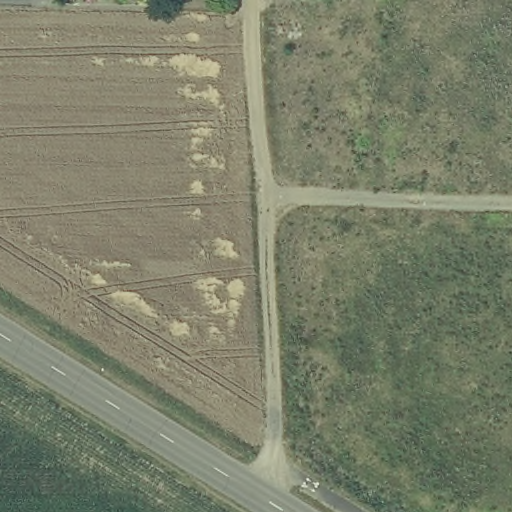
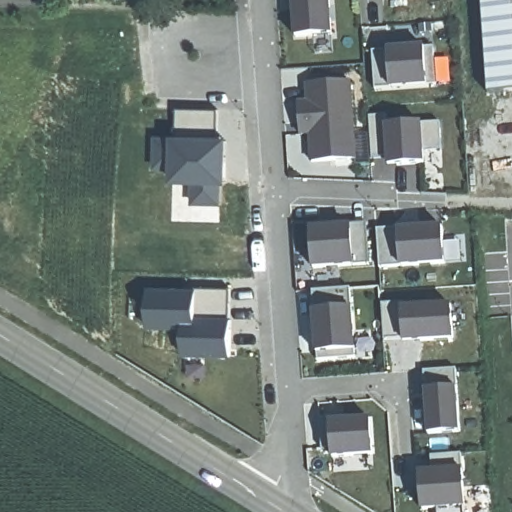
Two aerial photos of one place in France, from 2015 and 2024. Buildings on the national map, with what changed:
new [(295,37),(293,0),(330,0),(331,35),(295,37)]
new [(482,0),(512,0),(512,92),(488,93),(482,0)]
new [(427,85),(390,89),(390,87),(376,87),(373,51),(388,50),(426,47),(435,47),(437,84),(427,85)]
new [(311,162),(310,136),(301,136),(298,101),(307,101),(305,84),(352,82),(357,159),(311,162)]
new [(219,109),(221,142),(229,142),(228,179),(179,182),(178,109),(219,109)]
new [(423,150),(425,163),(387,166),(387,156),(372,157),(370,116),(386,115),(385,125),(422,123),(440,122),(442,149),(423,150)]
new [(354,265),(313,268),(310,228),(352,223),(367,223),(370,263),(354,265)]
new [(401,265),(380,266),(377,230),(398,229),(442,226),(445,263),(401,265)]
new [(230,287),(234,356),(185,356),(183,330),(148,329),(146,281),(230,287)]
new [(318,360),(316,353),(313,311),(313,290),(350,288),(353,309),(355,350),(355,357),(318,360)]
new [(420,341),(420,338),(385,339),(384,302),(405,301),(405,308),(451,306),(453,339),(420,341)]
new [(428,434),(426,389),(425,370),(455,369),(457,389),(460,432),(428,434)]
new [(332,458),(331,448),(322,449),(320,418),(330,417),(329,421),(372,419),(375,455),(332,458)]
new [(431,471),(430,457),(461,455),(462,471),(465,509),(465,512),(437,512),(436,510),(421,510),(418,472),(431,471)]

